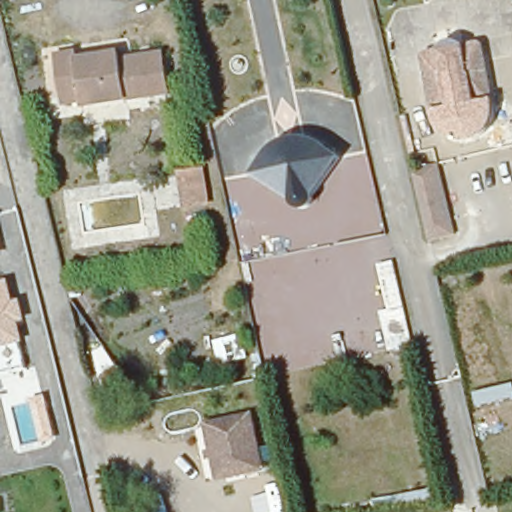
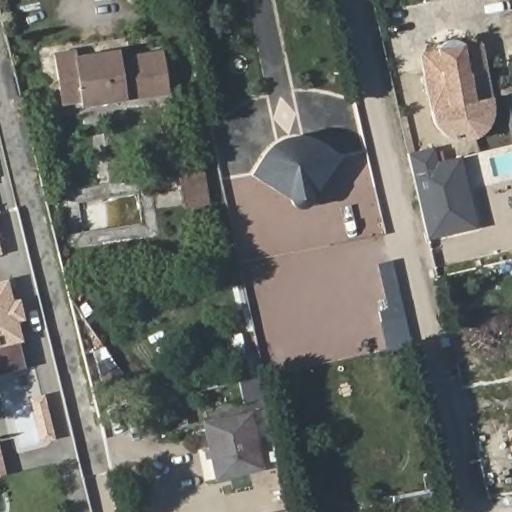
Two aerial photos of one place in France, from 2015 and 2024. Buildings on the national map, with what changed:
unchanged [(415,57),(415,56),(415,55),(415,54),(416,54),(416,53),(417,53),(418,53),(438,49),(437,48),(437,47),(437,46),(438,46),(438,45),(438,44),(439,43),(440,42),(440,41),(441,41),(441,40),(442,40),(443,40),(445,40),(445,39),(446,39),(447,40),(448,40),(449,40),(450,41),(451,41),(452,42),(452,43),(453,44),(453,45),(453,46),(475,41),(475,42),(476,42),(476,43),(477,43),(477,44),(477,45),(478,45),(478,46),(481,61),(476,62),(475,57),(460,61),(460,62),(460,63),(460,64),(460,65),(459,66),(458,67),(458,68),(458,69),(457,69),(457,70),(456,70),(456,71),(455,71),(454,72),(453,73),(452,73),(451,73),(450,74),(449,74),(448,74),(447,74),(446,73),(445,73),(444,73),(443,72),(442,71),(441,71),(440,70),(440,69),(440,68),(439,68),(438,67),(438,66),(438,65),(422,68),(423,73),(418,74),(415,57)]
unchanged [(489,101),(473,104),(473,106),(473,108),(473,109),(473,110),(473,111),(473,112),(472,113),(472,114),(472,115),(471,116),(470,118),(469,119),(468,119),(467,120),(466,121),(465,121),(464,122),(463,123),(461,123),(460,123),(458,123),(457,123),(456,123),(455,123),(454,123),(453,123),(452,122),(451,121),(450,121),(448,120),(447,119),(447,118),(446,118),(445,116),(445,115),(444,114),(443,113),(443,111),(427,114),(418,74),(423,73),(422,68),(438,65),(438,66),(438,67),(439,68),(440,68),(440,69),(440,70),(441,71),(442,71),(443,72),(444,73),(445,73),(446,73),(447,74),(448,74),(449,74),(450,74),(451,73),(452,73),(453,73),(454,72),(455,71),(456,71),(456,70),(457,70),(457,69),(458,69),(458,68),(458,67),(459,66),(460,65),(460,64),(460,63),(460,62),(460,61),(475,57),(476,62),(481,61),(489,101)]
unchanged [(72,111),(71,106),(55,109),(46,61),(61,58),(62,66),(107,59),(108,65),(149,58),(151,71),(156,97),(72,111)]
new [(505,94),(512,93),(512,123),(505,94)]
new [(443,111),(443,113),(444,114),(445,115),(445,116),(446,118),(447,118),(447,119),(448,120),(450,121),(451,121),(452,122),(453,123),(454,123),(455,123),(456,123),(457,123),(458,123),(460,123),(461,123),(463,123),(464,122),(465,121),(466,121),(467,120),(468,119),(469,119),(470,118),(471,116),(472,115),(472,114),(472,113),(473,112),(473,111),(473,110),(473,109),(473,108),(473,106),(473,104),(489,101),(491,110),(490,119),(485,130),(478,137),(470,141),(459,142),(446,138),(437,131),(431,124),(427,114),(443,111)]
unchanged [(303,207),(298,208),(293,209),(290,207),(286,200),(246,177),(254,161),(264,148),(271,143),(282,138),(291,136),(300,137),(308,141),(321,146),(336,157),(308,194),(308,203),(303,207)]
new [(477,229),(429,240),(410,154),(431,150),(434,163),(461,156),(477,229)]
demolished [(455,231),(428,237),(412,171),(437,164),(455,231)]
unchanged [(179,174),(202,169),(207,202),(184,206),(179,174)]
unchanged [(385,307),(376,262),(393,258),(412,347),(386,352),(375,309),(385,307)]
unchanged [(0,349),(0,280),(8,279),(24,342),(0,349)]
unchanged [(260,468),(215,478),(204,423),(250,414),(260,468)]

